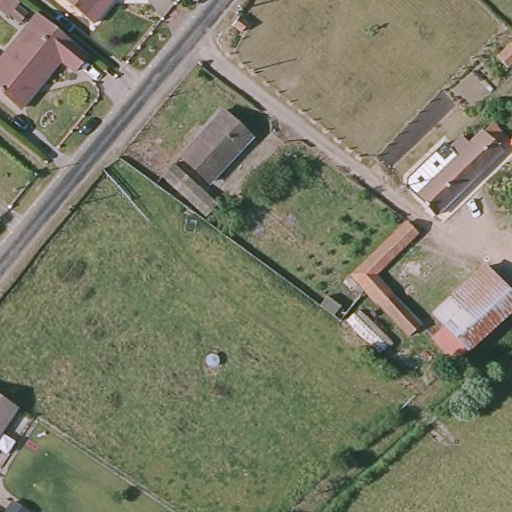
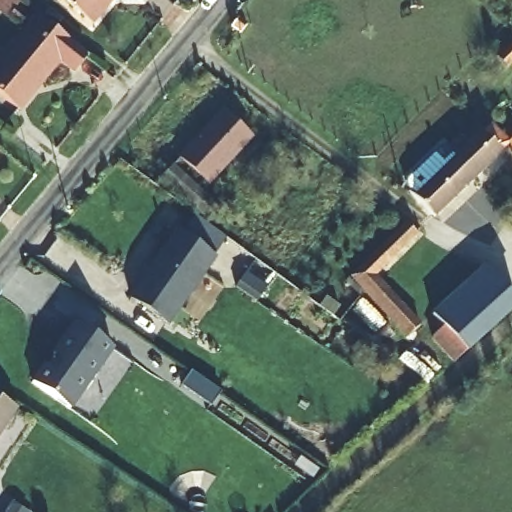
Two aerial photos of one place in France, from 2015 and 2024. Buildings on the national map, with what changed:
unchanged [(0,0),(4,0),(0,5),(0,0)]
unchanged [(94,24),(66,0),(108,0),(110,3),(94,24)]
unchanged [(83,57),(70,72),(53,61),(13,111),(0,100),(0,55),(32,15),(83,57)]
unchanged [(507,71),(492,56),(507,39),(512,41),(512,67),(507,71)]
unchanged [(247,137),(245,139),(204,184),(175,158),(215,114),(217,111),(247,137)]
unchanged [(426,154),(440,140),(445,145),(457,134),(462,139),(475,127),(480,121),(486,125),(492,121),(506,134),(505,146),(507,148),(512,143),(512,154),(507,149),(432,218),(408,193),(413,188),(437,165),(426,154)]
unchanged [(169,165),(212,204),(200,217),(157,178),(169,165)]
unchanged [(402,223),(414,235),(370,275),(417,325),(402,340),(361,295),(344,278),(370,252),(402,223)]
new [(177,232),(213,258),(167,323),(130,298),(177,232)]
unchanged [(432,317),(512,241),(512,311),(505,318),(449,369),(445,365),(426,345),(440,329),(432,317)]
new [(236,287),(245,273),(266,287),(257,301),(236,287)]
new [(44,364),(47,366),(52,351),(74,320),(115,349),(72,410),(31,381),(44,364)]
unchanged [(0,435),(0,396),(19,411),(0,435)]

